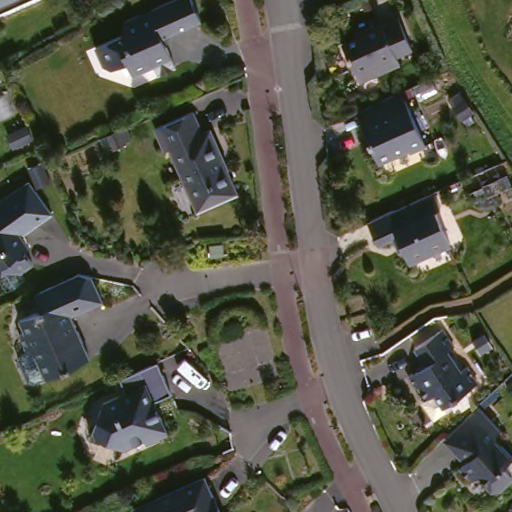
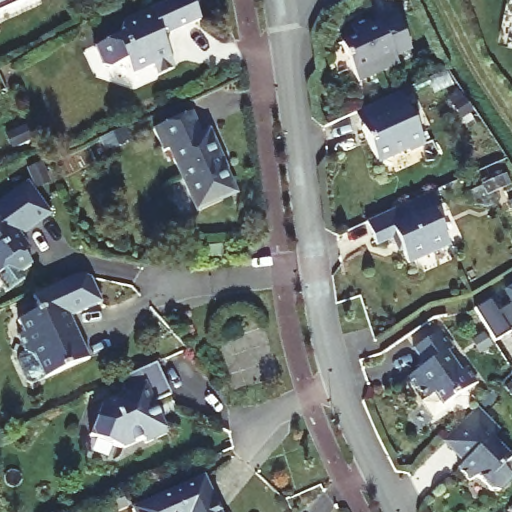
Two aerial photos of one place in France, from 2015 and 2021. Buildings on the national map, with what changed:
unchanged [(0,12),(0,0),(23,0),(0,12)]
unchanged [(179,0),(194,0),(205,23),(188,32),(169,41),(180,73),(165,83),(160,73),(141,82),(135,71),(119,77),(108,74),(100,52),(121,45),(131,24),(175,2),(179,0)]
unchanged [(376,29),(404,20),(419,54),(401,60),(404,67),(362,83),(345,44),(358,39),(354,29),(372,21),(376,29)]
unchanged [(417,158),(415,156),(381,170),(365,131),(359,115),(371,110),(410,96),(431,152),(417,158)]
unchanged [(195,113),(208,136),(219,131),(229,152),(224,155),(231,171),(235,169),(246,190),(209,208),(179,150),(170,156),(158,131),(195,113)]
unchanged [(434,195),(435,194),(444,214),(438,217),(454,250),(414,266),(405,249),(401,251),(383,216),(434,195)]
unchanged [(0,218),(0,212),(21,196),(48,230),(29,244),(44,263),(30,275),(16,272),(3,281),(0,278),(0,223),(2,221),(0,218)]
unchanged [(98,278),(108,304),(77,318),(94,356),(50,380),(39,357),(24,356),(17,341),(23,337),(16,323),(34,312),(25,296),(76,274),(98,278)]
new [(493,341),(474,309),(490,299),(498,312),(509,304),(501,289),(512,283),(512,331),(493,341)]
unchanged [(428,371),(417,354),(451,332),(461,349),(454,353),(467,375),(475,369),(483,384),(452,406),(445,395),(429,405),(414,380),(428,371)]
unchanged [(160,361),(177,396),(162,404),(175,431),(150,447),(146,443),(126,452),(92,438),(104,409),(124,399),(115,381),(160,361)]
unchanged [(506,431),(499,442),(512,454),(512,497),(503,496),(495,484),(484,485),(468,472),(475,463),(452,440),(481,409),(506,431)]
unchanged [(229,512),(145,512),(143,507),(214,478),(229,512)]

